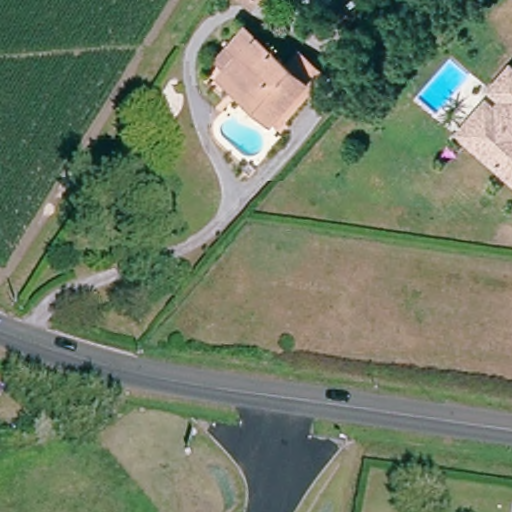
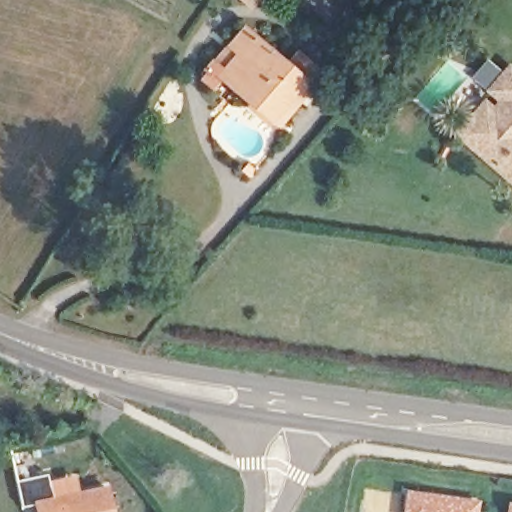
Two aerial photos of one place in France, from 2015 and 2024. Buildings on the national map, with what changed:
unchanged [(234,0),(261,0),(249,12),(234,0)]
unchanged [(282,127),(274,121),(263,112),(262,114),(212,75),(230,50),(242,34),(304,81),(313,87),(282,127)]
unchanged [(463,150),(502,104),(492,96),(509,74),(512,76),(512,190),(463,150)]
new [(33,498),(18,502),(12,473),(44,467),(50,494),(107,482),(113,512),(35,512),(33,498)]
new [(404,487),(481,497),(478,512),(400,512),(404,487)]
new [(507,500),(512,501),(512,512),(505,512),(507,500)]

